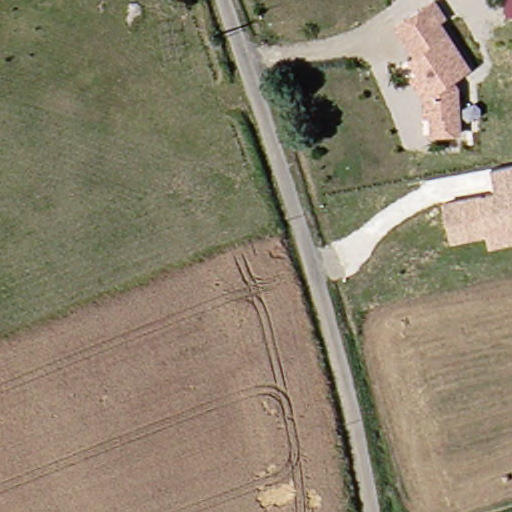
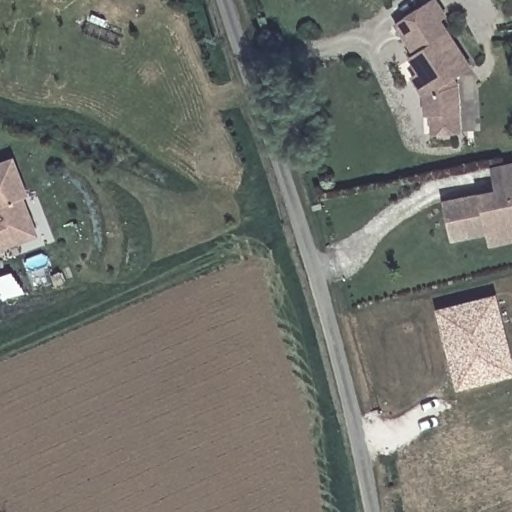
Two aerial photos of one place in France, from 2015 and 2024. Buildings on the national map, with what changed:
unchanged [(426,93),(414,74),(422,69),(413,55),(418,52),(398,21),(426,3),(429,0),(439,0),(440,0),(447,12),(442,16),(473,63),(456,74),(460,82),(462,128),(434,129),(433,110),(427,111),(426,93)]
unchanged [(29,195),(24,197),(39,238),(2,250),(4,255),(0,257),(0,163),(15,157),(29,195)]
unchanged [(479,193),(478,194),(496,188),(491,167),(512,163),(512,243),(488,249),(486,235),(451,244),(441,201),(479,193)]
new [(512,363),(512,377),(456,391),(436,310),(497,293),(512,363)]

